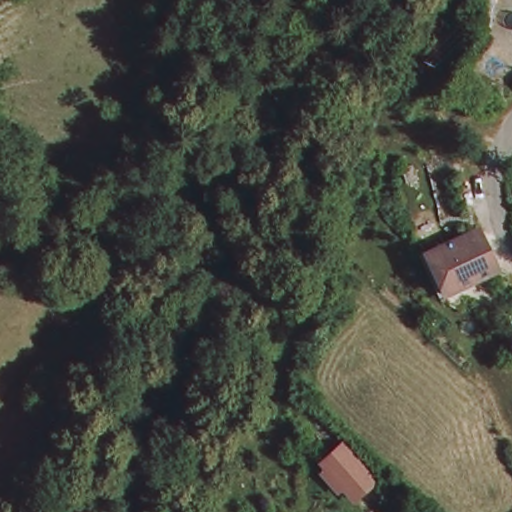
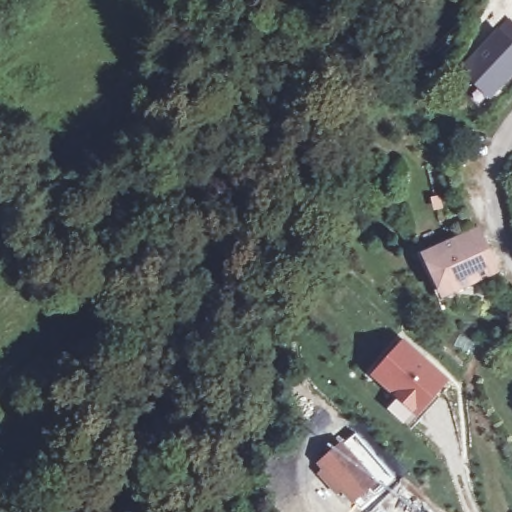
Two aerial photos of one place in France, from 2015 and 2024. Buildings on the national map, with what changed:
new [(497,27),(509,16),(512,19),(512,77),(490,100),(459,70),(497,27)]
unchanged [(446,240),(469,229),(477,248),(487,269),(434,294),(415,254),(446,240)]
new [(411,430),(387,410),(397,397),(372,375),(405,338),(449,379),(433,396),(436,399),(411,430)]
unchanged [(316,469),(336,450),(369,486),(349,505),(338,492),(333,496),(317,479),(322,475),(316,469)]

